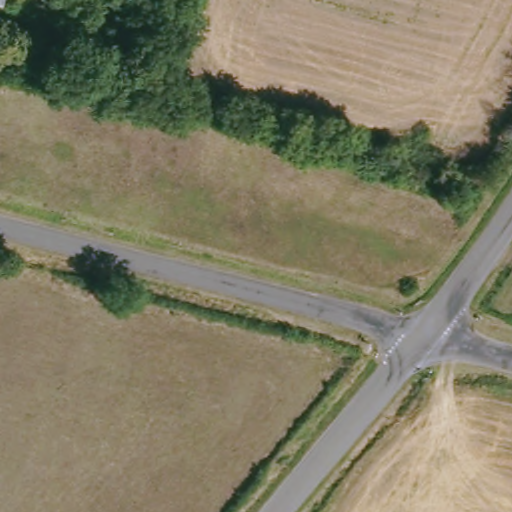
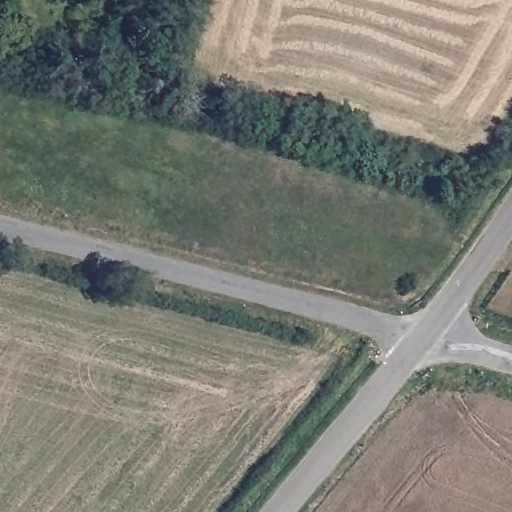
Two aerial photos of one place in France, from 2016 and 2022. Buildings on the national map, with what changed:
unchanged [(28,45),(28,49),(25,59),(6,54),(9,40),(28,45)]

